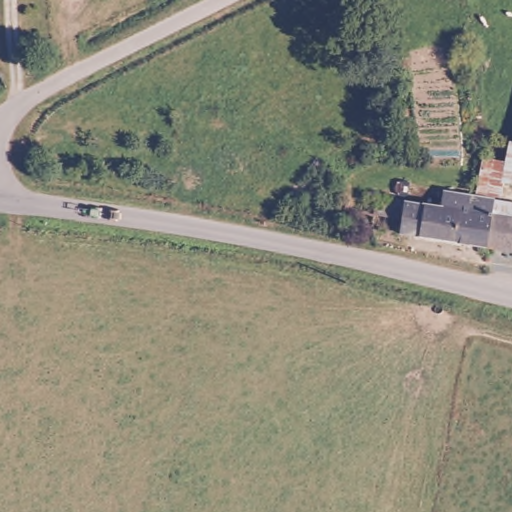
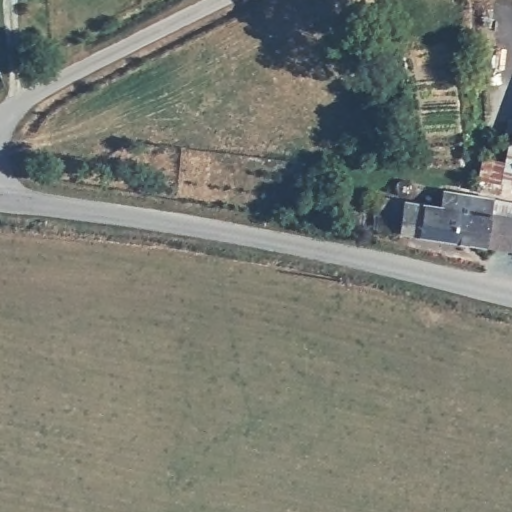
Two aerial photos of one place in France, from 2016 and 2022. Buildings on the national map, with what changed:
unchanged [(512,136),(512,181),(502,179),(500,192),(494,192),(475,190),(480,153),(505,157),(510,135),(512,136)]
unchanged [(440,202),(441,186),(475,190),(494,192),(493,198),(512,201),(512,245),(398,228),(399,210),(363,205),(364,191),(440,202)]

